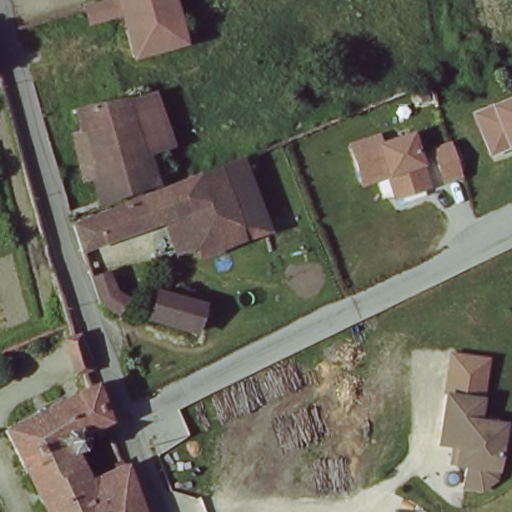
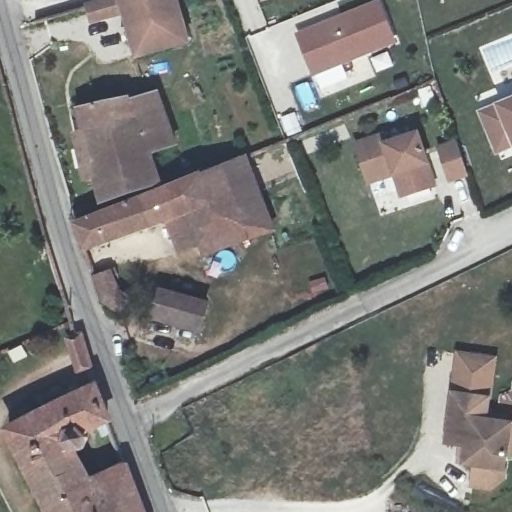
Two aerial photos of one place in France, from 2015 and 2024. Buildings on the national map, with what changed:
unchanged [(141,55),(121,13),(89,22),(83,9),(114,0),(171,0),(184,27),(189,39),(151,52),(141,55)]
new [(376,0),(379,0),(395,43),(313,77),(295,33),(376,0)]
unchanged [(83,101),(132,88),(136,104),(161,97),(166,111),(175,141),(150,147),(156,175),(104,192),(83,101)]
unchanged [(482,112),(512,100),(512,143),(499,148),(482,112)]
unchanged [(397,201),(392,180),(364,189),(352,143),(414,124),(434,189),(397,201)]
new [(456,142),(463,165),(466,174),(449,179),(447,173),(439,148),(456,142)]
unchanged [(201,251),(197,238),(174,246),(163,216),(79,244),(69,213),(185,175),(227,161),(233,158),(242,155),(258,197),(267,224),(268,228),(201,251)]
unchanged [(94,282),(109,274),(117,293),(125,303),(115,313),(99,296),(94,282)]
unchanged [(205,307),(199,334),(153,323),(160,295),(205,307)]
unchanged [(80,381),(66,343),(81,337),(95,375),(80,381)]
unchanged [(478,418),(491,420),(510,423),(506,451),(499,450),(496,476),(482,486),(464,483),(467,463),(456,461),(459,444),(439,441),(446,392),(481,397),(478,418)]
unchanged [(93,395),(104,425),(76,435),(79,445),(65,450),(83,488),(102,482),(101,476),(119,470),(133,512),(41,512),(3,432),(93,395)]

